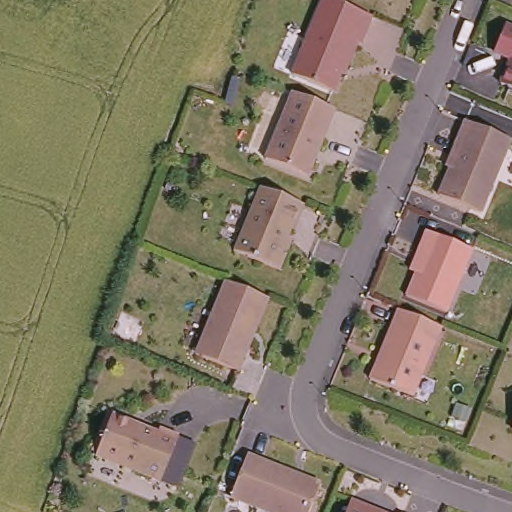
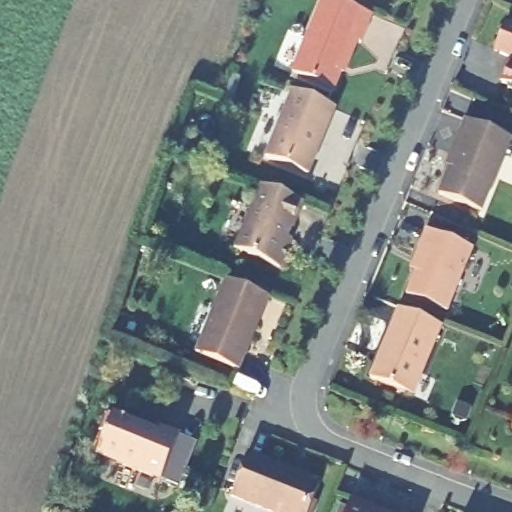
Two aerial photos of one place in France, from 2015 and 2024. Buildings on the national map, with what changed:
unchanged [(325,0),(342,0),(375,14),(364,42),(357,39),(337,88),(295,71),(325,0)]
unchanged [(512,21),(512,52),(499,47),(510,20),(512,21)]
unchanged [(506,79),(512,64),(512,84),(510,81),(506,79)]
unchanged [(263,148),(291,81),(333,99),(305,165),(263,148)]
unchanged [(512,153),(488,208),(447,190),(470,134),(467,132),(474,116),(512,132),(512,153)]
unchanged [(282,229),(287,231),(275,260),(230,241),(257,177),(297,194),(282,229)]
unchanged [(480,246),(455,310),(413,293),(433,245),(427,243),(433,227),(480,246)]
unchanged [(200,350),(230,277),(260,289),(273,294),(242,368),(200,350)]
unchanged [(376,372),(405,302),(448,320),(418,390),(376,372)]
unchanged [(177,467),(172,478),(155,471),(154,473),(90,447),(106,406),(152,425),(154,420),(172,428),(172,429),(190,436),(177,467)]
unchanged [(512,425),(510,425),(512,418),(512,425)]
unchanged [(325,482),(313,512),(277,512),(234,495),(251,452),(325,482)]
unchanged [(399,512),(348,512),(355,494),(399,512)]
unchanged [(413,512),(405,512),(406,509),(413,512)]

